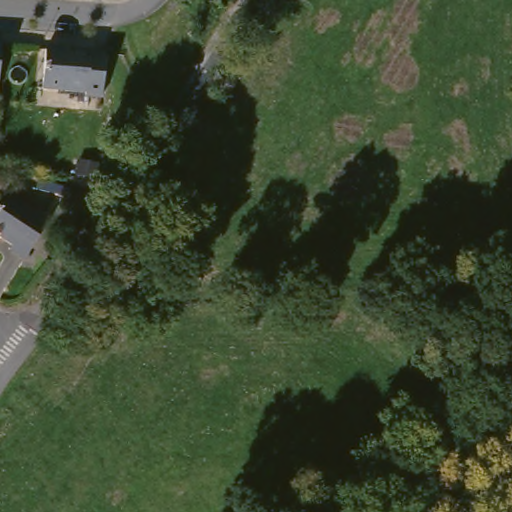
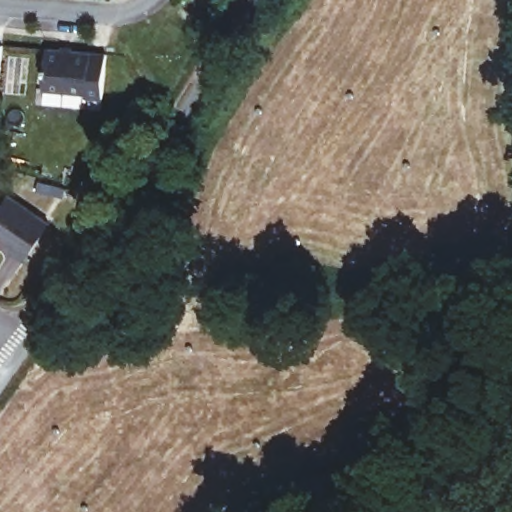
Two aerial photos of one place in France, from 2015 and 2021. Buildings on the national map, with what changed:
unchanged [(1,44),(0,54),(0,42),(1,42),(1,44)]
unchanged [(109,55),(105,99),(89,97),(90,94),(46,90),(50,50),(109,55)]
unchanged [(71,190),(69,200),(42,193),(44,185),(71,190)]
unchanged [(25,253),(10,243),(13,239),(0,230),(0,201),(9,189),(49,216),(25,253)]

